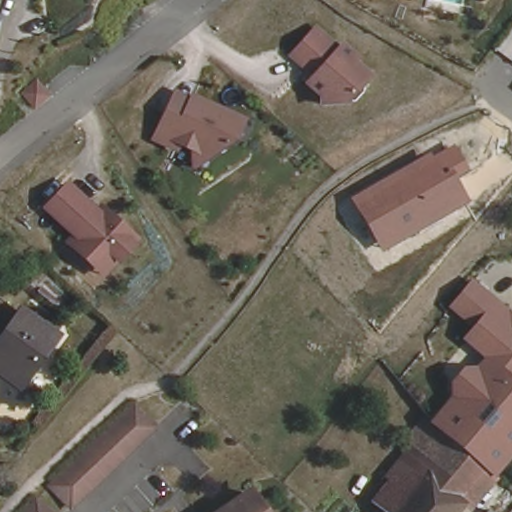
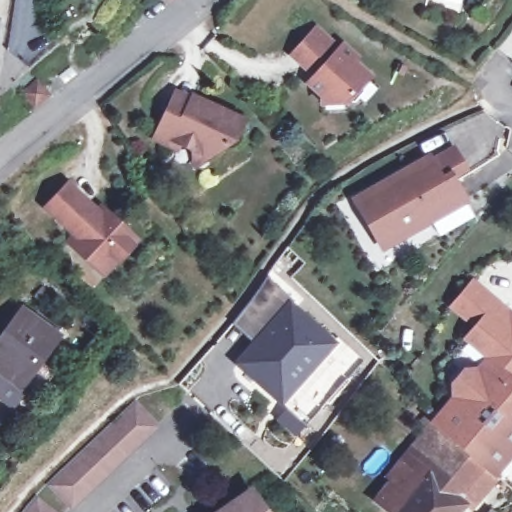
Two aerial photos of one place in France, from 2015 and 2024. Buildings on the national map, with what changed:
unchanged [(311,26),(335,47),(339,44),(352,57),(349,60),(365,76),(341,101),(317,102),(316,94),(303,81),(310,74),(311,72),(301,63),(300,65),(287,52),(311,26)]
unchanged [(33,109),(20,93),(37,79),(49,95),(33,109)]
unchanged [(157,137),(173,106),(180,91),(196,96),(246,121),(234,140),(212,157),(196,169),(174,157),(178,148),(157,137)]
unchanged [(429,155),(432,159),(456,146),(469,172),(454,180),(468,205),(383,252),(351,199),(429,155)]
unchanged [(86,256),(68,239),(75,232),(46,204),(68,181),(97,209),(101,205),(136,238),(109,265),(103,272),(86,256)]
new [(276,397),(238,362),(259,338),(254,343),(231,323),(236,318),(248,302),(266,275),(294,301),(290,305),(333,343),(316,361),(281,401),(276,397)]
unchanged [(473,277),(512,317),(512,330),(487,359),(461,336),(459,334),(464,328),(444,306),(473,277)]
unchanged [(25,383),(12,401),(0,391),(0,339),(23,311),(56,336),(18,378),(25,383)]
unchanged [(437,415),(487,359),(512,330),(512,439),(491,465),(437,415)]
unchanged [(132,404),(156,427),(76,508),(53,486),(132,404)]
unchanged [(450,512),(396,512),(374,492),(386,476),(391,466),(414,440),(411,436),(433,411),(437,415),(491,465),(450,512)]
new [(286,413),(299,425),(294,430),(281,418),(286,413)]
unchanged [(261,507),(266,512),(219,512),(246,492),(258,508),(261,507)]
unchanged [(51,512),(22,512),(32,498),(51,512)]

